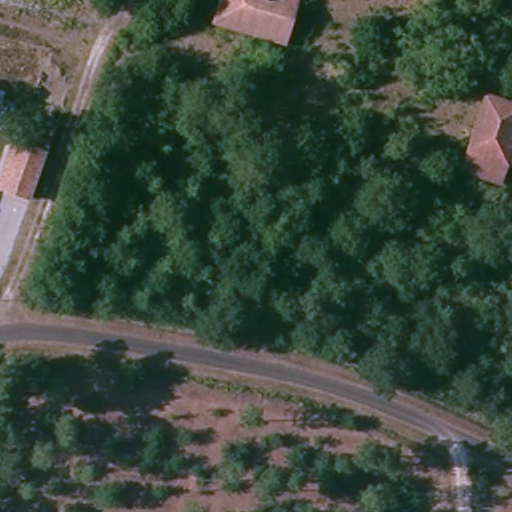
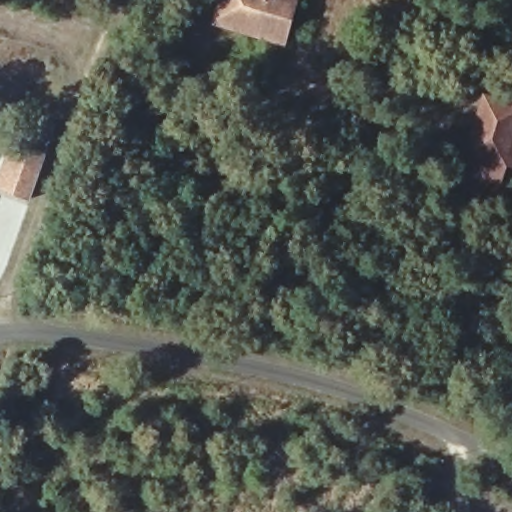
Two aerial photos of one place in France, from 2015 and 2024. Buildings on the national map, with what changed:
unchanged [(257,9),(249,35),(215,24),(223,0),(271,0),(267,12),(257,9)]
unchanged [(271,0),(299,0),(283,45),(249,35),(257,9),(267,12),(271,0)]
unchanged [(486,96),(512,104),(512,134),(477,124),(486,96)]
unchanged [(512,134),(512,157),(501,153),(492,181),(461,171),(477,124),(512,134)]
unchanged [(54,136),(49,150),(35,192),(34,195),(0,183),(0,182),(15,138),(33,144),(38,130),(54,136)]

